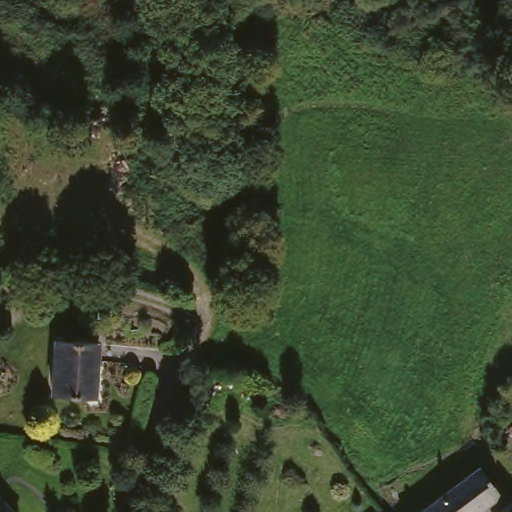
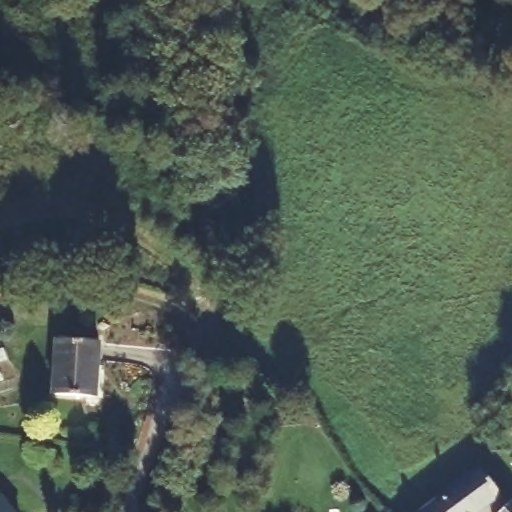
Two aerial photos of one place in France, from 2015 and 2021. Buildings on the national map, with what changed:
unchanged [(105,339),(103,368),(98,368),(96,393),(58,391),(62,337),(105,339)]
unchanged [(506,496),(486,512),(427,512),(486,468),(506,496)]
unchanged [(18,512),(0,512),(0,492),(18,512)]
unchanged [(512,512),(507,512),(512,507),(512,512)]

